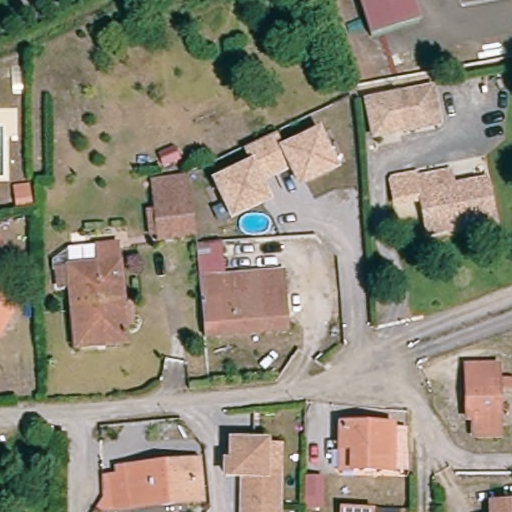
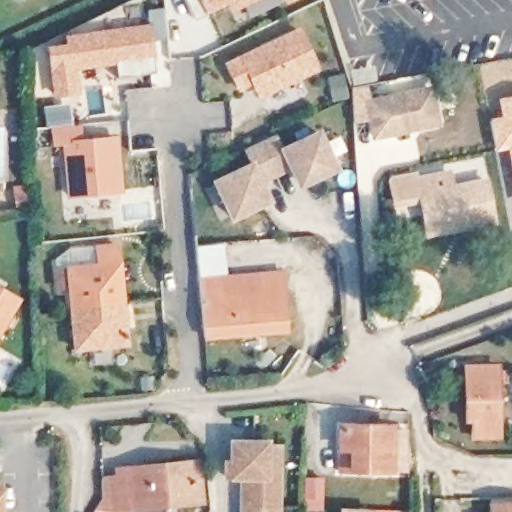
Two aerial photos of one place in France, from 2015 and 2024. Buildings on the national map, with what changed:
new [(234,12),(231,5),(198,19),(189,0),(259,0),(234,12)]
new [(286,0),(294,0),(288,3),(286,0)]
demolished [(414,29),(361,41),(347,0),(404,0),(414,29)]
new [(66,43),(66,36),(148,24),(146,10),(164,8),(166,39),(152,40),(157,72),(119,76),(117,65),(78,70),(81,96),(54,99),(48,47),(66,43)]
new [(321,69),(261,100),(254,85),(240,92),(226,62),(300,27),(321,69)]
unchanged [(428,85),(435,118),(372,132),(365,98),(428,85)]
new [(500,115),(497,98),(512,95),(512,179),(506,150),(495,152),(488,117),(500,115)]
new [(83,126),(84,137),(119,135),(124,194),(68,200),(64,146),(53,147),(51,129),(83,126)]
unchanged [(252,161),(245,148),(277,134),(283,146),(321,128),(342,171),(302,188),(289,171),(266,181),(275,203),(233,221),(212,180),(252,161)]
unchanged [(427,233),(421,201),(395,207),(390,184),(416,178),(417,184),(450,177),(454,192),(488,185),(497,226),(459,234),(429,240),(427,233)]
unchanged [(14,210),(11,198),(9,190),(22,187),(25,195),(27,207),(14,210)]
demolished [(181,239),(147,241),(144,191),(178,189),(181,239)]
unchanged [(122,248),(131,331),(132,345),(81,350),(74,290),(64,291),(63,271),(95,268),(94,257),(103,256),(102,250),(122,248)]
unchanged [(199,282),(219,280),(220,299),(226,298),(245,297),(244,279),(259,278),(260,279),(285,277),(287,294),(283,294),(286,332),(205,339),(201,300),(199,282)]
unchanged [(475,433),(474,416),(468,416),(467,379),(466,364),(499,363),(499,377),(512,377),(512,386),(499,386),(500,432),(475,433)]
unchanged [(408,468),(390,469),(390,474),(337,472),(337,449),(341,449),(342,429),(391,430),(391,433),(407,433),(408,468)]
unchanged [(227,463),(233,463),(234,444),(267,444),(266,473),(280,474),(279,512),(244,512),(244,508),(245,477),(227,477),(227,463)]
unchanged [(127,474),(126,468),(139,467),(139,466),(205,462),(207,501),(143,506),(142,504),(105,506),(113,495),(112,476),(127,474)]
unchanged [(322,479),(321,509),(306,509),(306,500),(307,479),(322,479)]
unchanged [(2,499),(2,512),(0,512),(0,490),(2,489),(2,499)]
unchanged [(512,506),(512,512),(484,512),(484,507),(512,506)]

